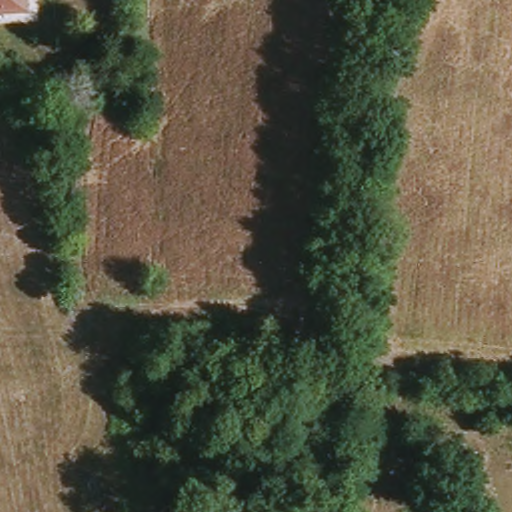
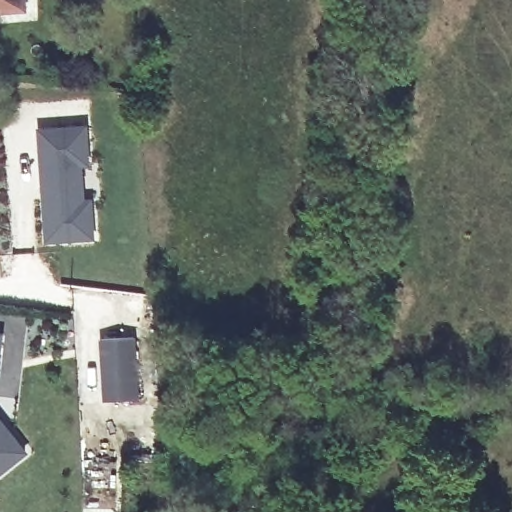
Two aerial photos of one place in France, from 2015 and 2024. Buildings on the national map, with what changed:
unchanged [(0,17),(0,0),(25,0),(26,15),(0,17)]
new [(89,164),(99,162),(102,201),(92,202),(94,239),(49,241),(41,131),(87,127),(89,164)]
new [(0,351),(0,332),(2,332),(0,351)]
new [(136,337),(140,398),(104,401),(100,339),(136,337)]
new [(0,471),(0,416),(27,450),(0,471)]

